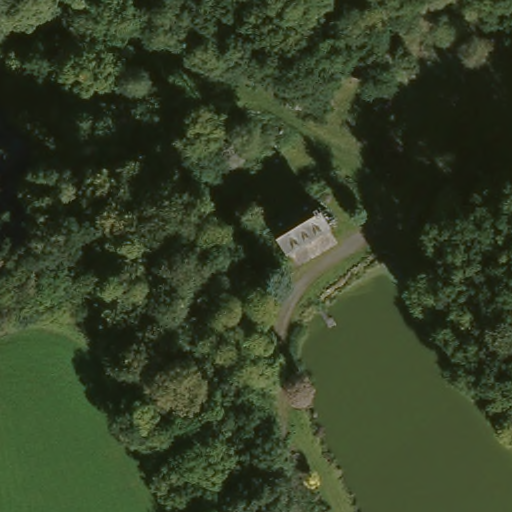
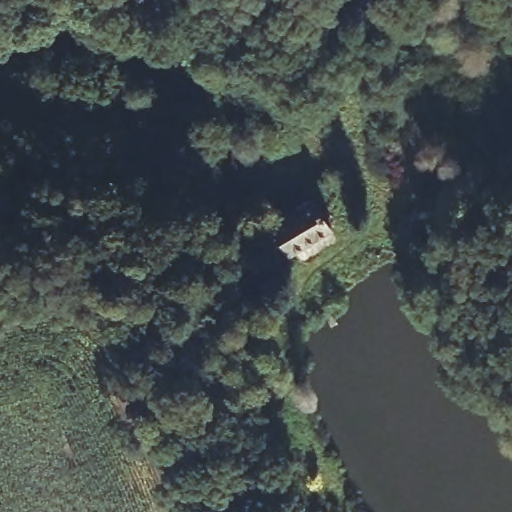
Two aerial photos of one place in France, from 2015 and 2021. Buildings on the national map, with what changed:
unchanged [(217,170),(197,219),(169,207),(188,159),(217,170)]
unchanged [(327,232),(283,257),(268,229),(313,207),(327,232)]

